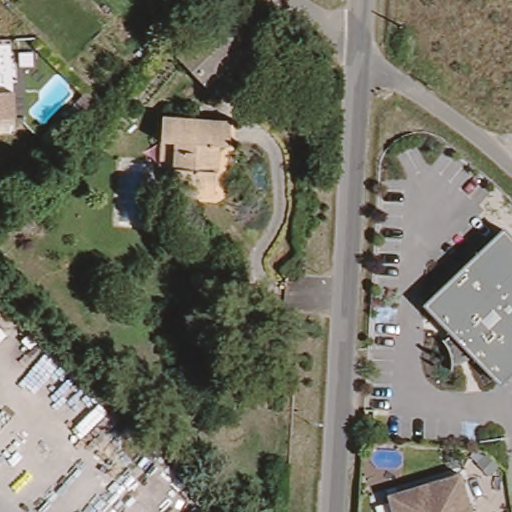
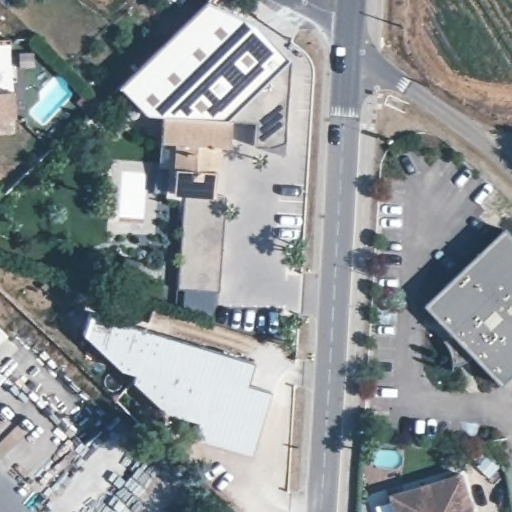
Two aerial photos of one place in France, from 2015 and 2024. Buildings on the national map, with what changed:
new [(166,113),(145,114),(119,88),(207,2),(255,22),(291,59),(285,147),(254,146),(257,120),(233,116),(230,116),(166,113)]
demolished [(177,59),(217,21),(245,51),(205,88),(177,59)]
unchanged [(12,95),(13,121),(0,122),(0,95),(12,95)]
unchanged [(176,192),(178,140),(165,140),(166,113),(233,116),(232,143),(223,142),(219,194),(176,192)]
new [(224,199),(217,294),(178,292),(183,192),(219,194),(224,199)]
unchanged [(502,392),(421,313),(502,230),(512,240),(512,381),(502,392)]
new [(85,312),(250,361),(243,383),(267,391),(248,454),(190,437),(195,421),(163,411),(130,381),(133,373),(118,369),(79,333),(85,312)]
unchanged [(6,336),(0,341),(0,330),(6,336)]
unchanged [(465,473),(476,512),(398,512),(393,495),(465,473)]

